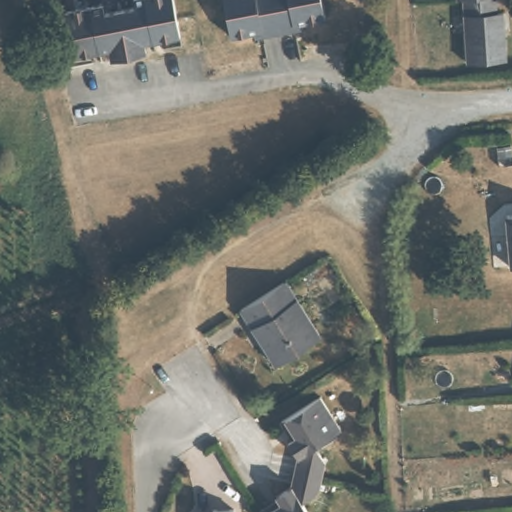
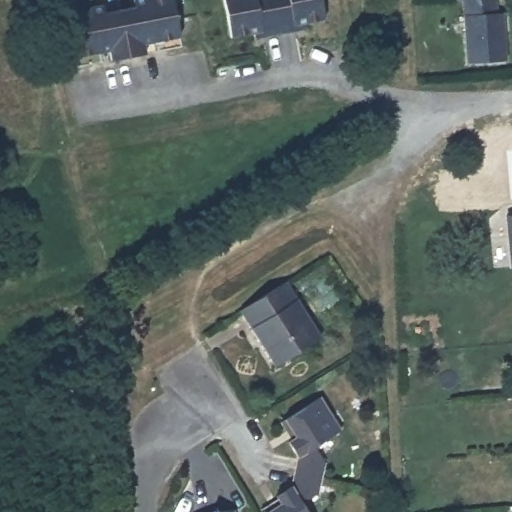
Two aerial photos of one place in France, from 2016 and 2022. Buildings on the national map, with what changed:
unchanged [(145,54),(127,57),(118,11),(134,8),(132,0),(143,0),(151,37),(142,39),(145,54)]
unchanged [(162,39),(157,35),(151,37),(143,0),(171,0),(179,36),(162,39)]
unchanged [(266,29),(235,36),(227,0),(276,0),(282,32),(267,35),(266,29)]
unchanged [(297,24),(297,29),(282,32),(276,0),(324,0),(328,17),(297,24)]
unchanged [(499,13),(502,61),(463,64),(459,0),(492,0),(493,13),(499,13)]
unchanged [(107,61),(104,46),(99,48),(90,7),(101,5),(102,14),(118,11),(127,57),(107,61)]
unchanged [(99,48),(92,49),(89,54),(72,58),(64,13),(90,7),(99,48)]
unchanged [(512,213),(512,262),(511,262),(510,213),(512,213)]
unchanged [(323,334),(273,364),(235,307),(285,276),(323,334)]
unchanged [(305,459),(297,448),(307,441),(293,423),(330,401),(351,434),(324,451),(335,464),(332,478),(302,473),(305,459)]
unchanged [(278,506),(301,491),(302,473),(332,478),(329,496),(307,511),(308,512),(281,512),(278,506)]
unchanged [(210,504),(233,504),(233,512),(210,512),(210,504)]

